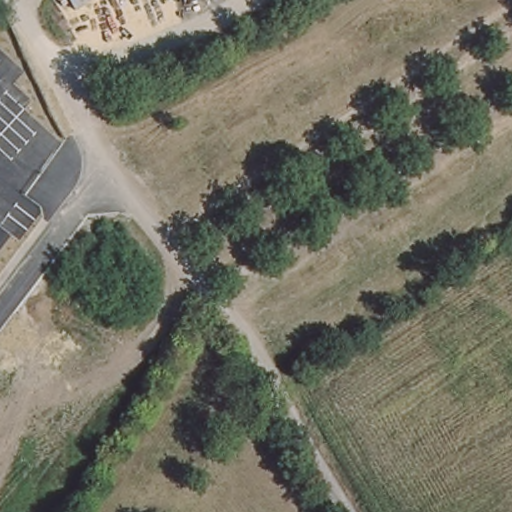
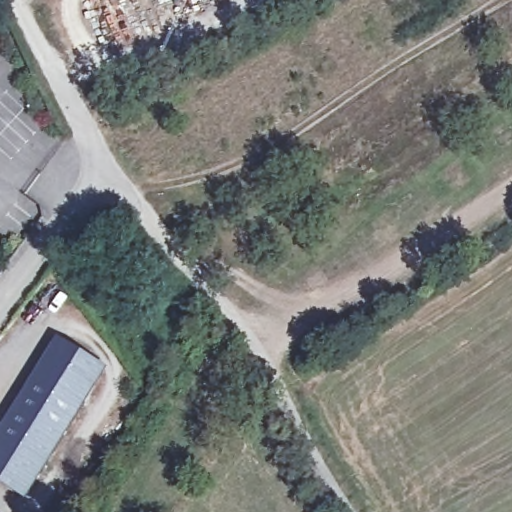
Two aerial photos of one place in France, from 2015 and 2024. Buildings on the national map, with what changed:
new [(0,446),(4,440),(0,438),(0,429),(32,375),(41,380),(61,346),(96,366),(74,401),(82,405),(44,466),(37,463),(22,487),(19,492),(0,481),(0,446)]

